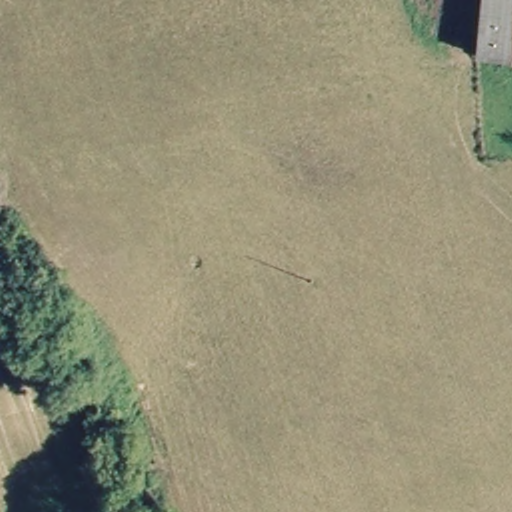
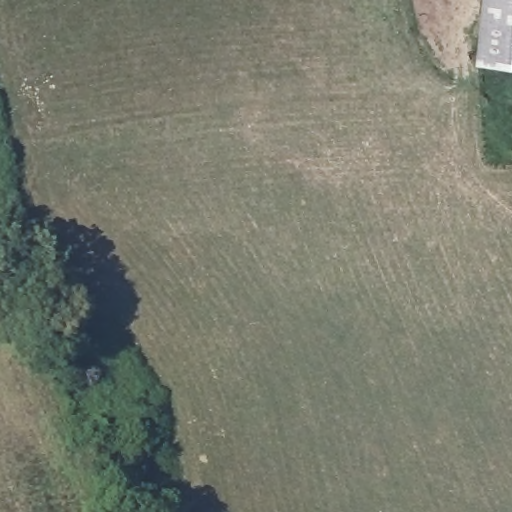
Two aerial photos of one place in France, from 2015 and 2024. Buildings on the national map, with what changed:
unchanged [(479,0),(512,0),(512,61),(479,61),(479,0)]

